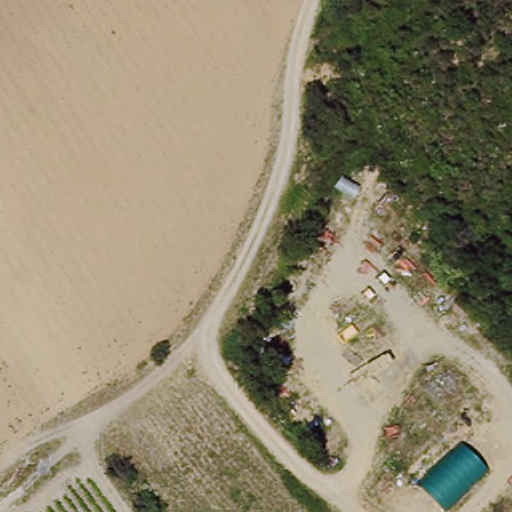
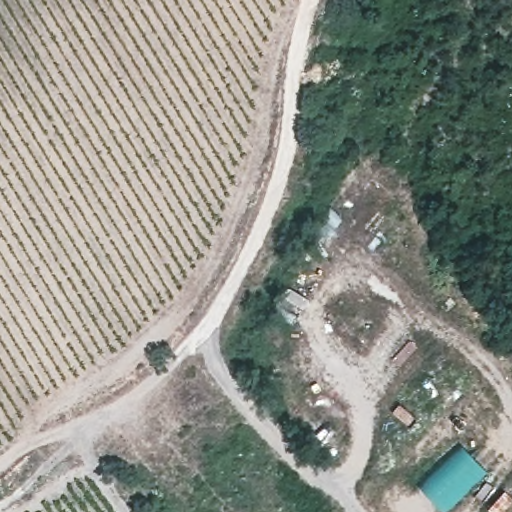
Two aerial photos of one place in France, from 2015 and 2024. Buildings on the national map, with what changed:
unchanged [(490,472),(446,512),(442,512),(415,483),(460,441),(490,472)]

